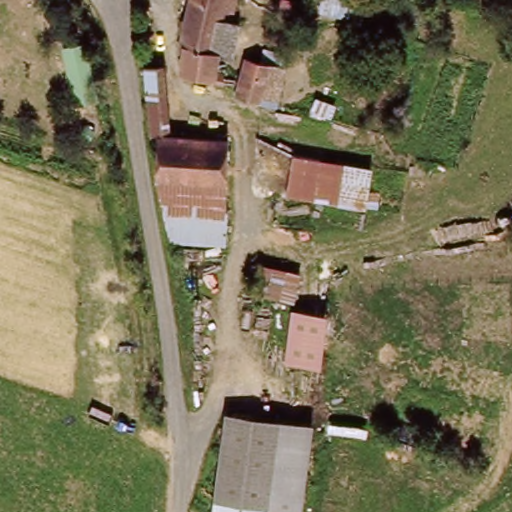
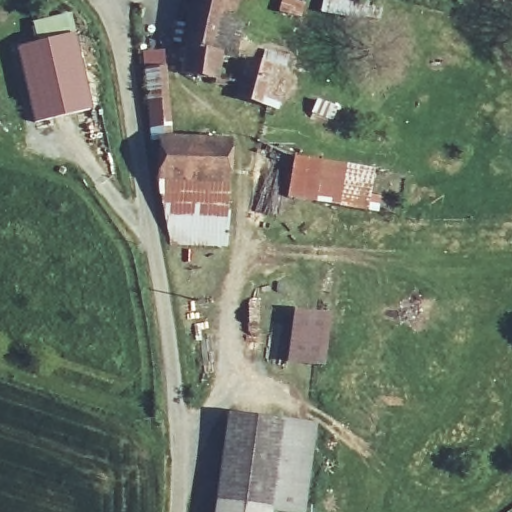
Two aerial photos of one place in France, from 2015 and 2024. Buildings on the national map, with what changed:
unchanged [(221,57),(217,79),(181,72),(185,50),(179,49),(190,0),(241,0),(238,12),(228,11),(226,22),(243,25),(236,59),(221,57)]
new [(43,35),(34,37),(31,20),(69,12),(73,31),(92,109),(33,123),(15,46),(43,40),(43,35)]
unchanged [(240,97),(248,65),(286,75),(279,107),(240,97)]
unchanged [(159,181),(158,140),(151,136),(146,70),(163,70),(169,139),(231,141),(230,183),(159,181)]
unchanged [(366,211),(287,197),(294,156),(374,169),(366,211)]
unchanged [(164,212),(159,181),(230,183),(228,212),(164,212)]
unchanged [(227,242),(169,241),(164,212),(228,212),(227,242)]
unchanged [(299,305),(251,296),(260,265),(305,274),(299,305)]
unchanged [(328,313),(322,355),(320,355),(319,363),(286,361),(292,310),(328,313)]
unchanged [(218,502),(229,415),(280,422),(309,426),(298,512),(288,512),(269,509),(266,508),(218,502)]
unchanged [(266,508),(265,512),(216,512),(218,502),(266,508)]

